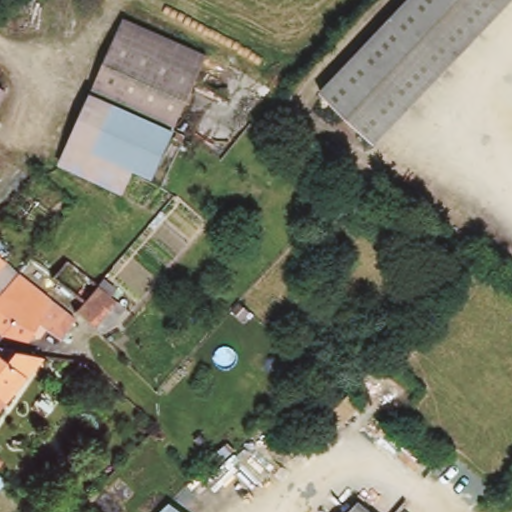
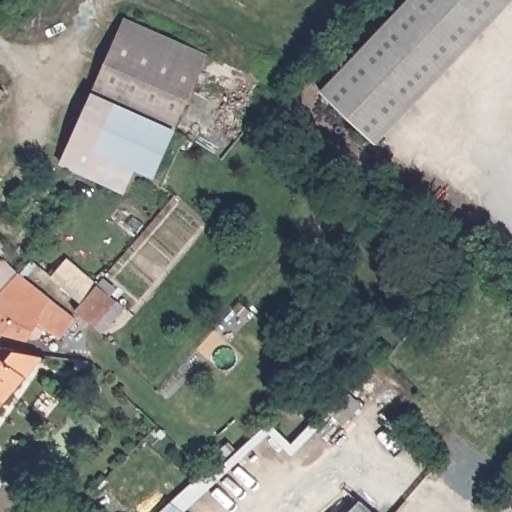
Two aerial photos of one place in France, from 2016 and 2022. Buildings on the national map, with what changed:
unchanged [(375,143),(320,91),(407,0),(510,0),(375,143)]
unchanged [(109,54),(124,19),(208,55),(194,86),(154,175),(135,167),(124,192),(61,164),(109,54)]
unchanged [(17,278),(0,300),(0,262),(17,278)]
unchanged [(100,338),(81,322),(76,317),(77,315),(76,313),(81,306),(51,281),(66,265),(97,290),(125,312),(100,338)]
unchanged [(17,278),(74,320),(60,340),(35,325),(25,342),(0,338),(0,300),(17,278)]
unchanged [(28,353),(40,356),(0,404),(0,348),(28,353)]
unchanged [(5,482),(0,487),(0,477),(5,482)]
unchanged [(372,512),(348,512),(358,500),(372,512)]
unchanged [(180,512),(162,512),(170,503),(180,512)]

